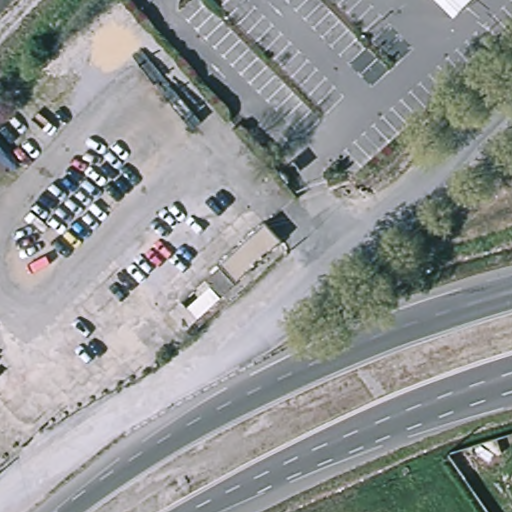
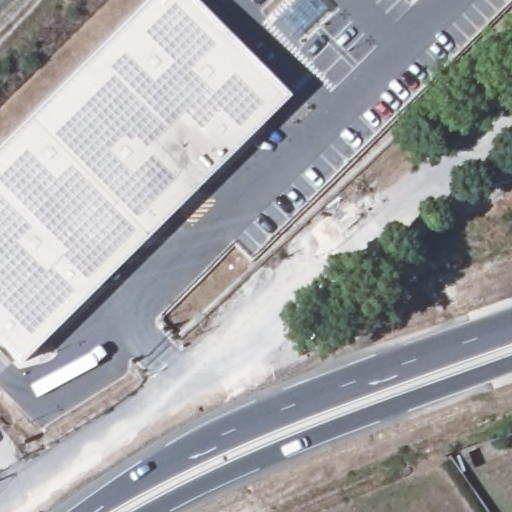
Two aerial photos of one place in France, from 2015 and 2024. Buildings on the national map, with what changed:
new [(7,388),(0,381),(0,127),(124,0),(188,0),(299,102),(8,387),(7,388)]
demolished [(451,0),(471,0),(461,10),(451,0)]
demolished [(243,279),(226,259),(271,218),(288,237),(243,279)]
demolished [(226,264),(241,280),(192,325),(176,309),(226,264)]
unchanged [(464,476),(445,448),(498,431),(509,459),(464,476)]

